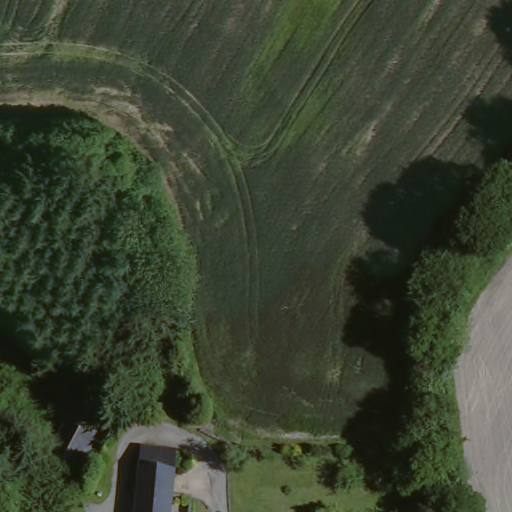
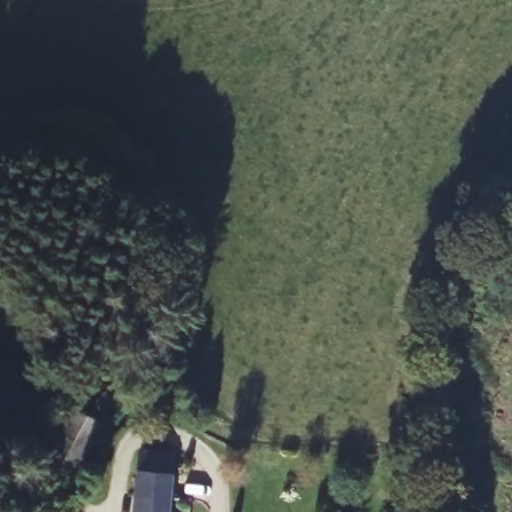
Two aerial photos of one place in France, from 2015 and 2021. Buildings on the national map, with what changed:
unchanged [(88,413),(118,430),(91,479),(61,463),(88,413)]
unchanged [(173,449),(184,450),(180,498),(193,499),(200,499),(199,512),(140,512),(146,447),(173,449)]

